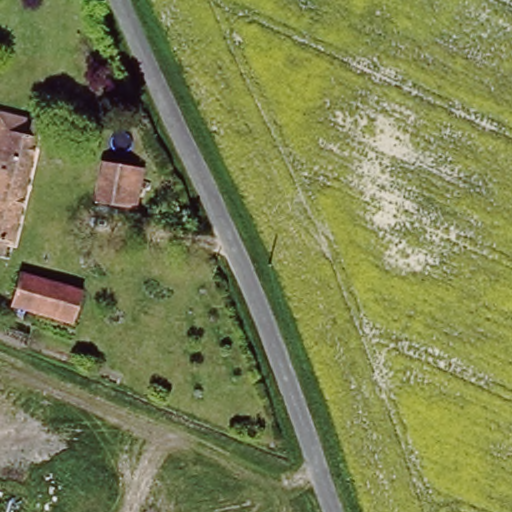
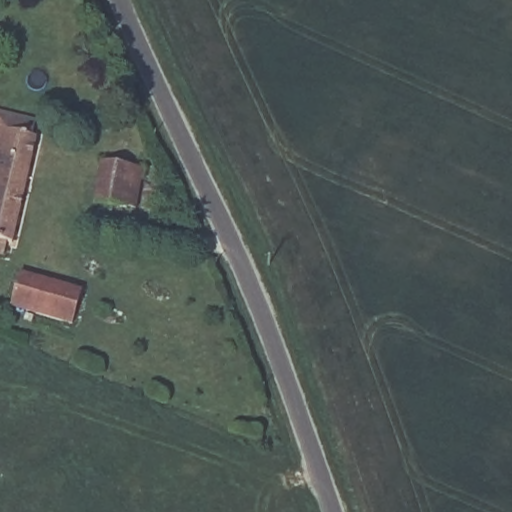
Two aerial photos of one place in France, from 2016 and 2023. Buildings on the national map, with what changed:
unchanged [(32,137),(37,140),(13,245),(7,243),(3,255),(0,254),(0,114),(38,124),(32,137)]
unchanged [(145,170),(137,210),(97,202),(104,162),(145,170)]
unchanged [(83,292),(74,325),(10,306),(20,275),(83,292)]

